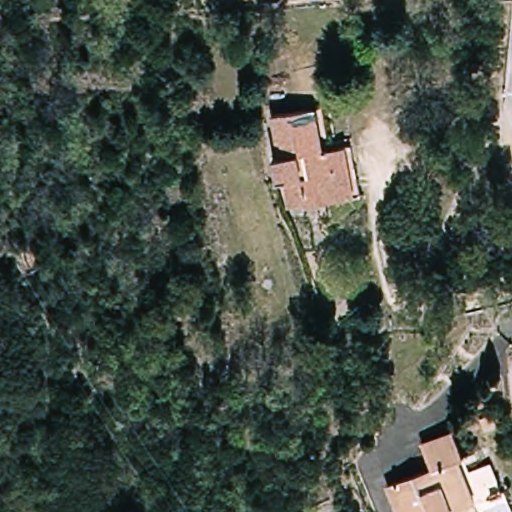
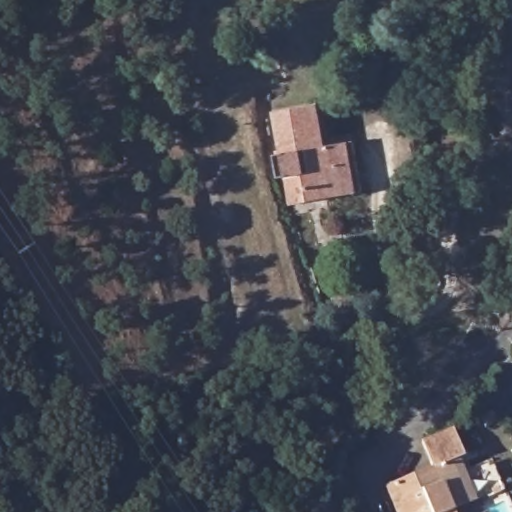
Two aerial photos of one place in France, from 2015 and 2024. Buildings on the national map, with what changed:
unchanged [(286,178),(279,179),(276,158),(282,157),(274,115),(316,107),(323,146),(352,141),(361,194),(305,203),(291,206),(286,178)]
unchanged [(399,512),(388,485),(432,467),(423,442),(454,430),(465,457),(459,459),(476,502),(469,504),(454,510),(455,512),(399,512)]
unchanged [(492,463),(503,491),(482,500),(471,472),(492,463)]

